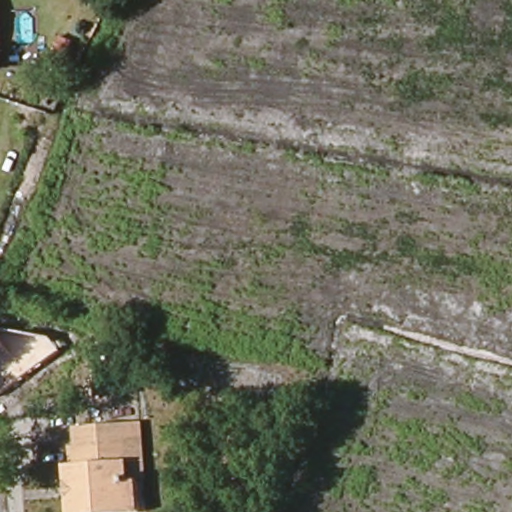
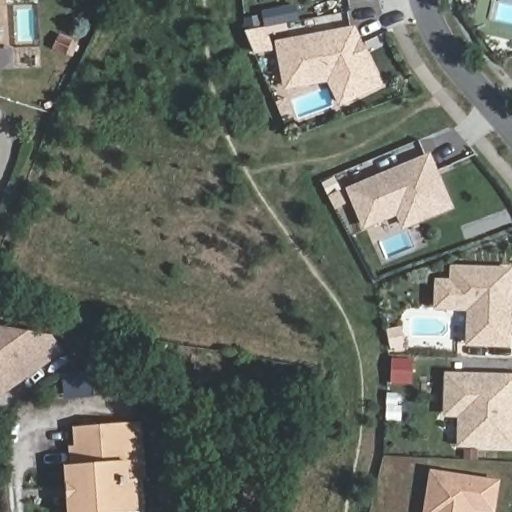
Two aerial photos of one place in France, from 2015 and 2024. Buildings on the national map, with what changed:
new [(339,107),(327,84),(284,91),(275,40),(355,26),(384,86),(339,107)]
new [(403,230),(397,216),(363,230),(347,189),(430,153),(455,209),(403,230)]
new [(465,346),(465,311),(434,310),(435,278),(449,279),(449,265),(512,267),(512,315),(511,347),(465,346)]
unchanged [(60,352),(0,393),(0,328),(52,338),(60,352)]
new [(456,447),(456,418),(442,417),(444,372),(512,374),(512,449),(456,447)]
unchanged [(75,466),(79,465),(79,447),(86,446),(85,429),(148,427),(149,467),(150,486),(150,512),(77,512),(75,466)]
new [(428,480),(496,490),(493,512),(424,512),(428,480)]

